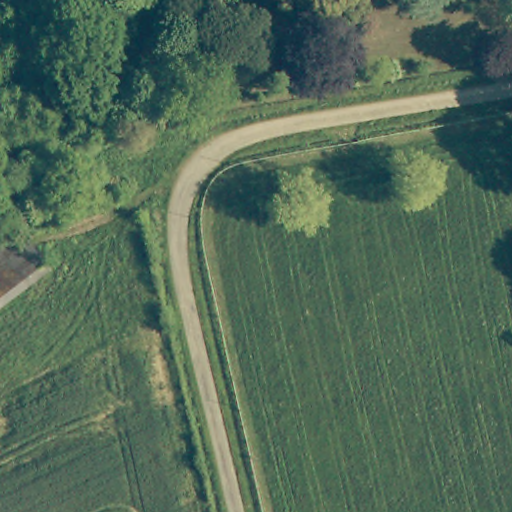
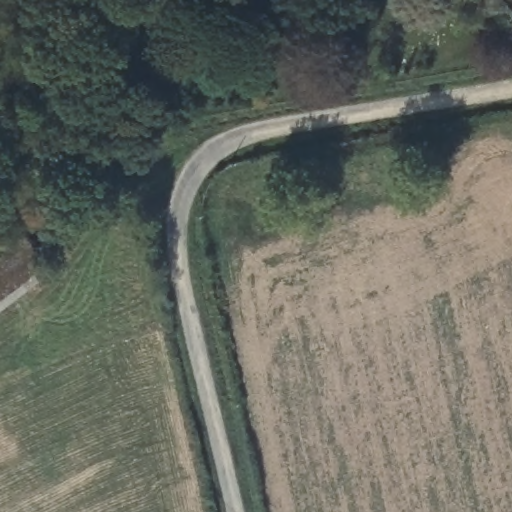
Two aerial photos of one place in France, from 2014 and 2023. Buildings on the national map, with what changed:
unchanged [(0,301),(0,250),(24,232),(49,264),(0,301)]

